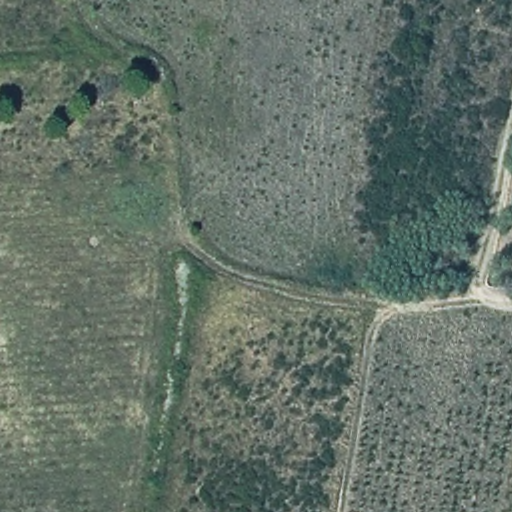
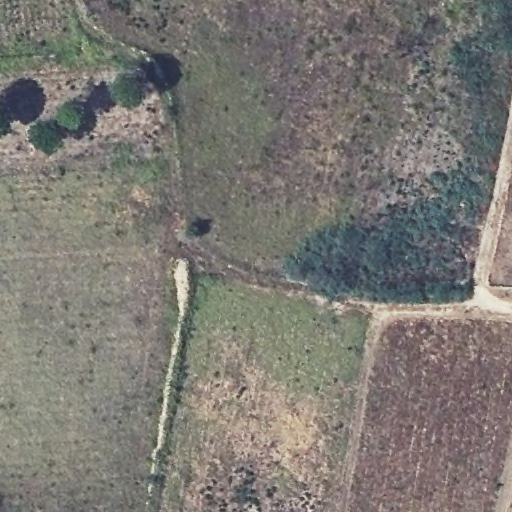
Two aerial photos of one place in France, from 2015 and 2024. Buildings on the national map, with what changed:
[]

